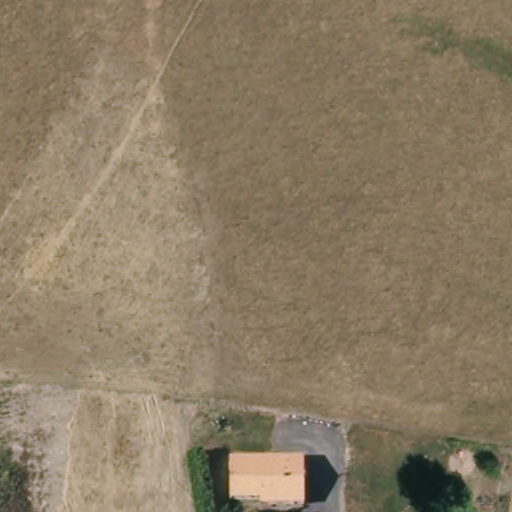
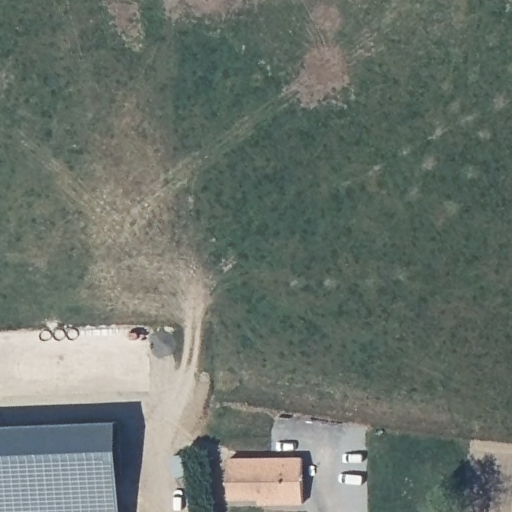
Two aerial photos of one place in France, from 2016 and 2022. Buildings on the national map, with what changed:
new [(120,422),(122,512),(0,512),(0,426),(120,422)]
unchanged [(308,504),(273,505),(273,500),(235,500),(235,460),(308,459),(308,504)]

